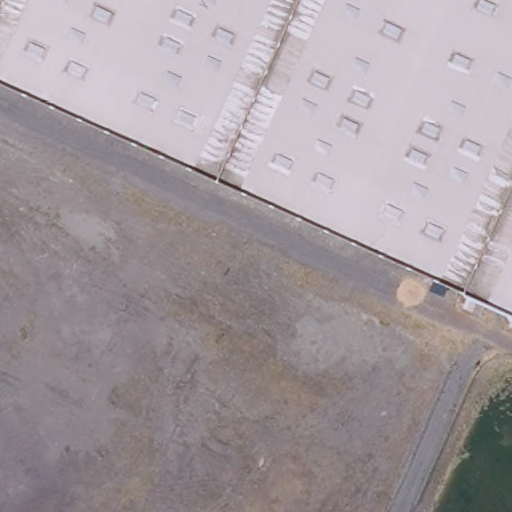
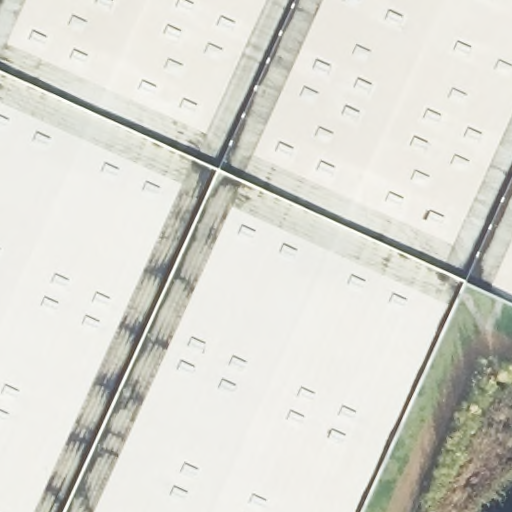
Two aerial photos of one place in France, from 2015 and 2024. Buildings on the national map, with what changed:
unchanged [(512,320),(0,88),(0,0),(512,0),(512,320)]
new [(362,512),(0,512),(0,88),(460,296),(362,512)]

